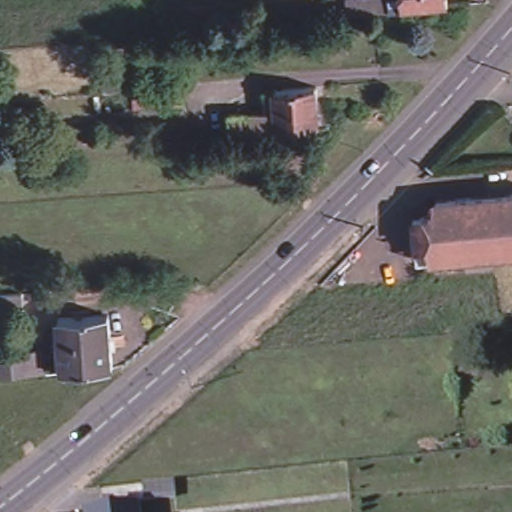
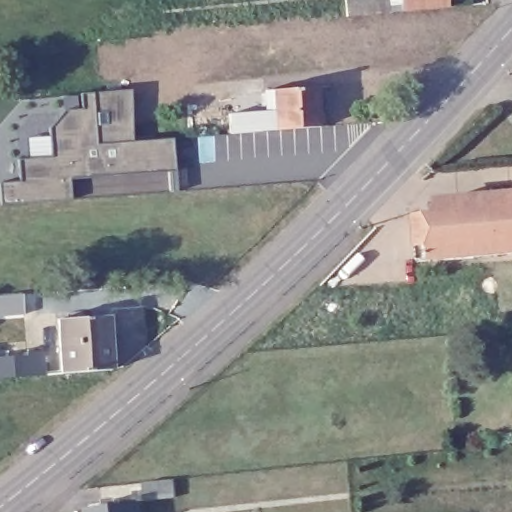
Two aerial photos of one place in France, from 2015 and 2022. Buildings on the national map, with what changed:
unchanged [(346,14),(345,0),(372,0),(373,11),(346,14)]
unchanged [(402,9),(401,0),(446,0),(447,5),(402,9)]
unchanged [(132,108),(131,87),(180,82),(182,103),(132,108)]
unchanged [(323,125),(234,131),(232,112),(270,109),(268,89),(320,85),(323,125)]
new [(133,142),(167,138),(170,171),(70,178),(72,198),(1,204),(0,190),(0,183),(21,181),(19,160),(50,157),(49,128),(64,111),(82,109),(82,93),(128,90),(133,142)]
unchanged [(407,213),(422,211),(422,206),(427,201),(430,201),(430,195),(512,189),(512,247),(423,255),(412,256),(410,241),(407,213)]
unchanged [(0,314),(0,294),(22,292),(22,312),(0,314)]
unchanged [(111,367),(61,371),(57,317),(107,313),(111,367)]
unchanged [(25,353),(25,350),(42,348),(43,373),(27,374),(0,376),(0,355),(25,353)]
unchanged [(174,500),(144,503),(142,486),(172,483),(174,500)]
unchanged [(137,512),(113,512),(137,509),(137,512)]

